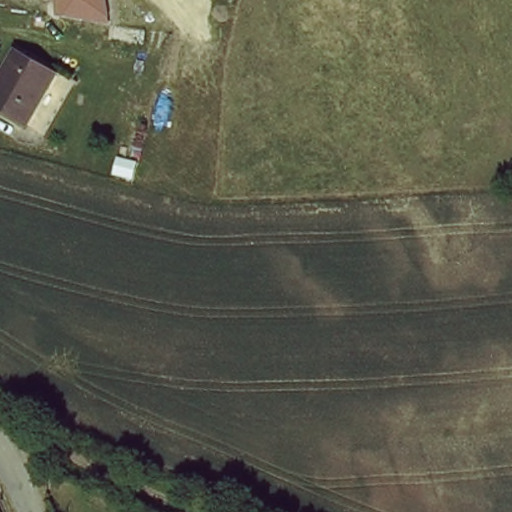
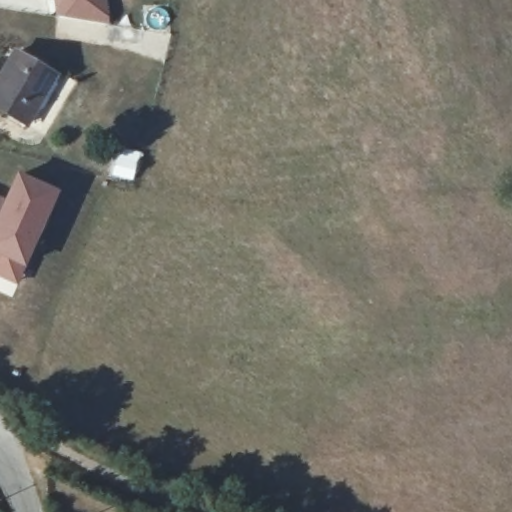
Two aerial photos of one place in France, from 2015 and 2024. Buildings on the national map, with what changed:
unchanged [(110,25),(59,18),(57,1),(48,3),(48,0),(107,0),(110,25)]
unchanged [(55,71),(30,123),(0,108),(0,82),(15,50),(55,71)]
new [(24,175),(68,196),(36,271),(29,268),(21,287),(0,277),(0,198),(10,203),(24,175)]

